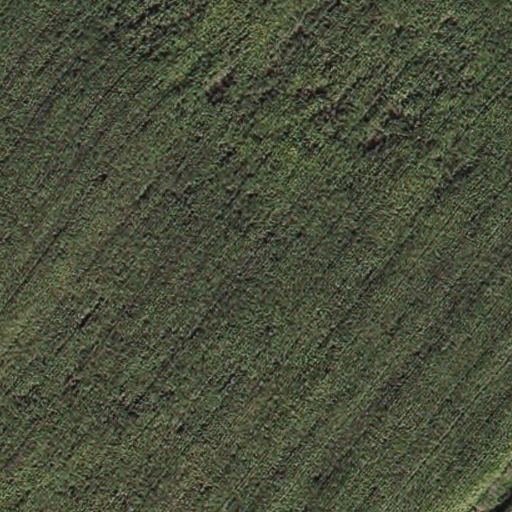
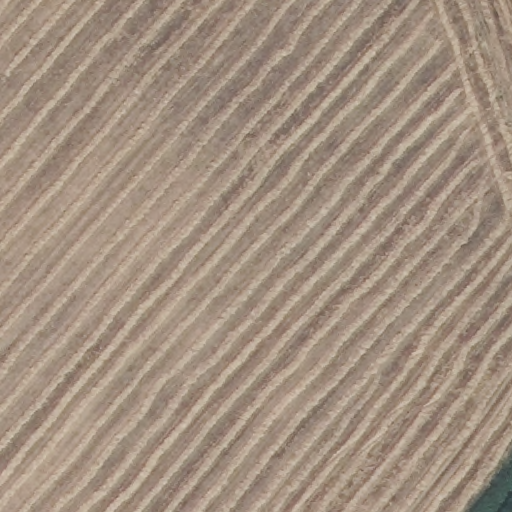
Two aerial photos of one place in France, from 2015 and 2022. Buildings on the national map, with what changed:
[]

